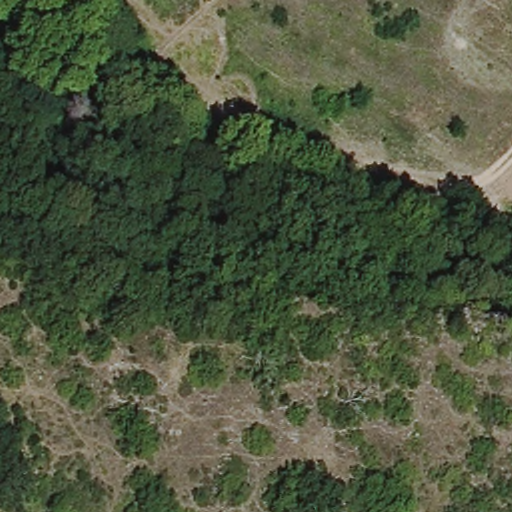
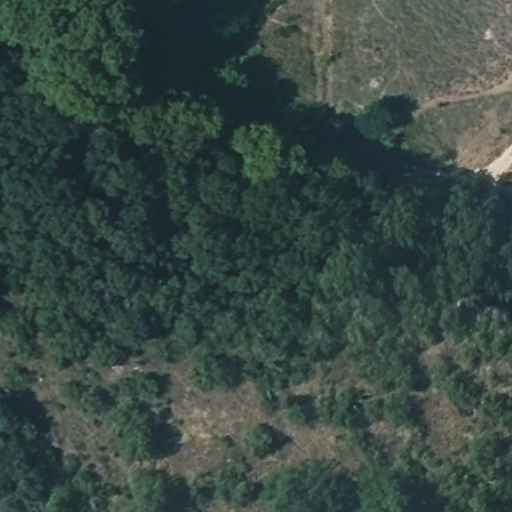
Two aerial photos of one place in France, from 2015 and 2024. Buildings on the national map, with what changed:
unchanged [(22,23),(0,37),(0,1),(1,0),(7,0),(22,23)]

